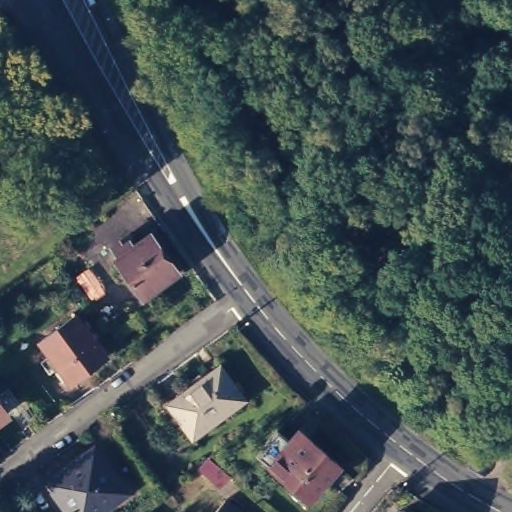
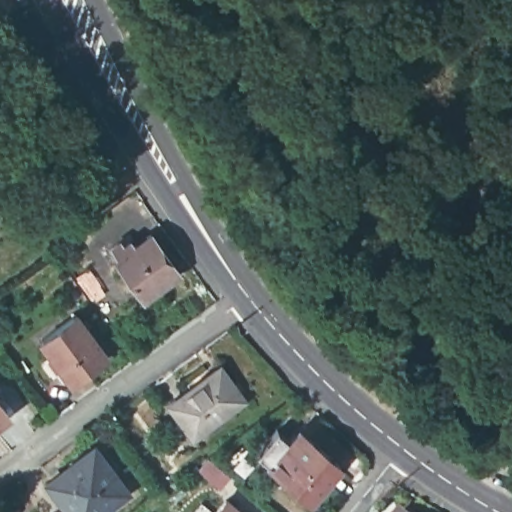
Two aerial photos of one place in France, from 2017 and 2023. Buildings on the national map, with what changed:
unchanged [(130,251),(146,238),(174,277),(139,303),(112,264),(115,261),(111,255),(108,251),(114,246),(117,250),(125,244),(130,251)]
unchanged [(92,298),(79,280),(91,271),(104,289),(92,298)]
unchanged [(41,335),(76,309),(107,351),(71,377),(41,335)]
unchanged [(245,395),(193,432),(169,399),(221,361),(245,395)]
unchanged [(0,413),(0,398),(7,408),(0,413)]
unchanged [(257,447),(277,425),(290,436),(300,425),(340,460),(310,494),(257,447)]
unchanged [(66,461),(67,464),(92,446),(121,487),(88,512),(70,512),(44,477),(66,461)]
unchanged [(200,470),(209,459),(229,477),(220,488),(200,470)]
unchanged [(246,512),(211,512),(227,494),(246,512)]
unchanged [(418,512),(400,512),(408,503),(418,512)]

